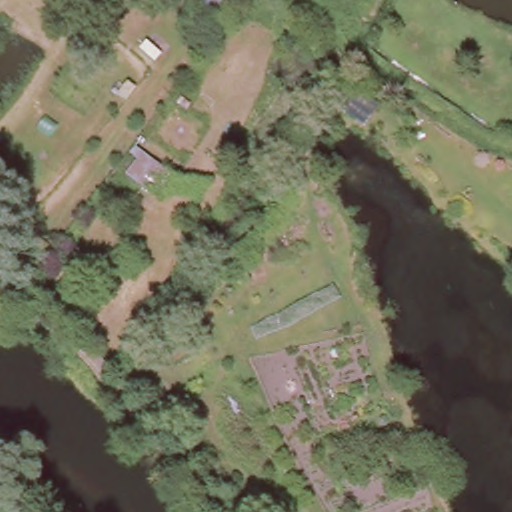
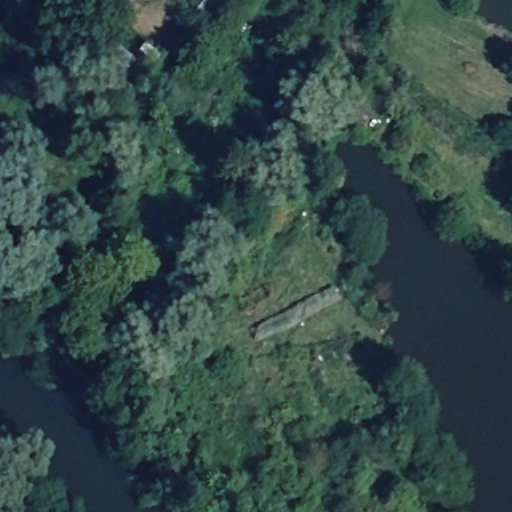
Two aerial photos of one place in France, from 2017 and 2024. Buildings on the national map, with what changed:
unchanged [(368,127),(343,108),(357,87),(382,104),(368,127)]
unchanged [(135,165),(130,160),(139,147),(177,177),(164,203),(124,184),(135,165)]

